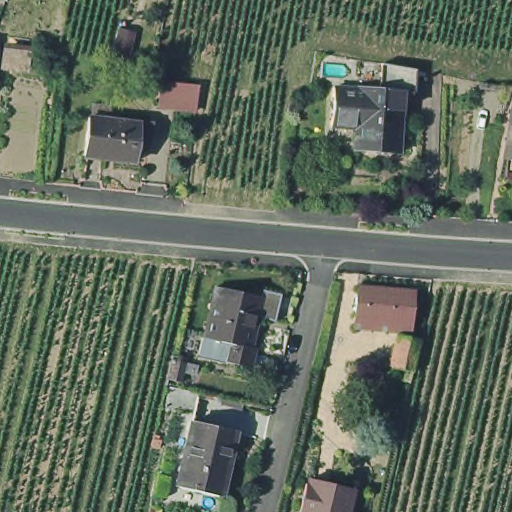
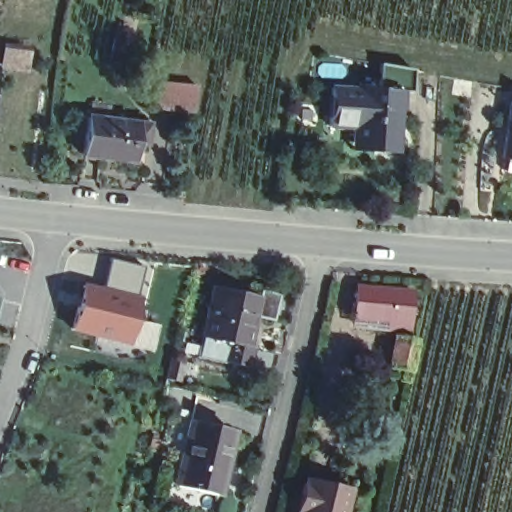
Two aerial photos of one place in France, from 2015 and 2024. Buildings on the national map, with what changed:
unchanged [(3,49),(30,52),(28,73),(1,68),(3,49)]
unchanged [(351,134),(351,125),(328,124),(328,117),(329,90),(329,84),(354,85),(376,84),(378,59),(411,65),(416,66),(416,75),(414,87),(399,86),(394,149),(371,147),(350,146),(351,134)]
unchanged [(159,108),(161,83),(200,86),(198,99),(197,112),(159,108)]
unchanged [(149,130),(145,129),(142,150),(136,149),(100,144),(85,142),(90,103),(104,105),(141,110),(151,112),(149,130)]
unchanged [(512,108),(512,155),(504,154),(512,108)]
new [(144,267),(128,345),(71,331),(84,283),(105,286),(113,259),(144,267)]
unchanged [(252,367),(223,361),(201,357),(206,337),(217,286),(262,296),(263,297),(264,289),(282,293),(276,320),(259,316),(252,347),(256,348),(252,367)]
unchanged [(354,326),(354,317),(358,286),(414,291),(411,323),(410,332),(354,326)]
unchanged [(402,380),(404,369),(397,368),(396,372),(391,371),(392,366),(394,359),(389,358),(393,346),(397,347),(399,335),(419,339),(412,371),(410,382),(402,380)]
unchanged [(188,354),(186,362),(182,378),(168,375),(173,355),(174,350),(188,354)]
unchanged [(166,403),(171,382),(199,389),(195,409),(166,403)]
unchanged [(219,398),(239,403),(238,408),(218,403),(219,398)]
unchanged [(193,416),(237,427),(222,490),(196,484),(178,480),(179,475),(193,416)]
unchanged [(309,472),(354,483),(347,512),(300,512),(301,507),(300,504),(306,477),(308,477),(309,472)]

